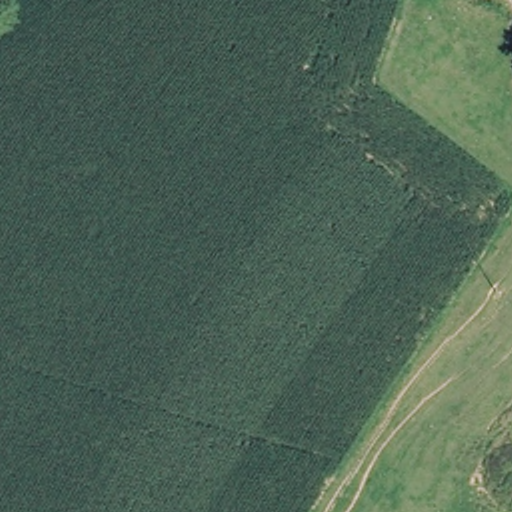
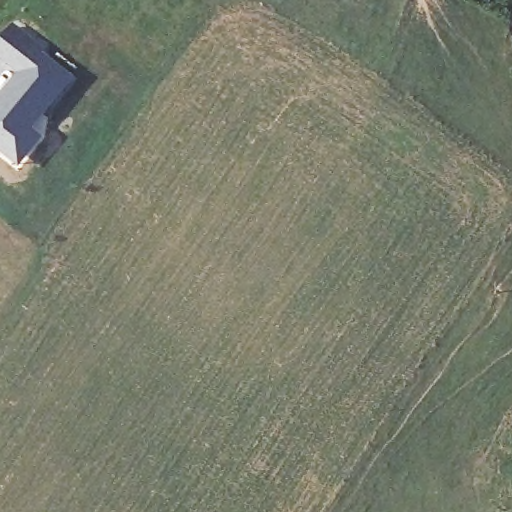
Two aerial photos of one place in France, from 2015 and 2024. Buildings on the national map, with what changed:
new [(22,72),(0,56),(0,43),(13,26),(44,51),(41,55),(70,79),(11,151),(0,141),(0,100),(22,72)]

